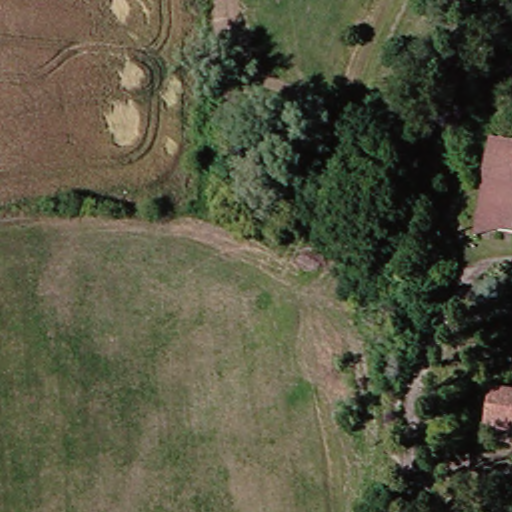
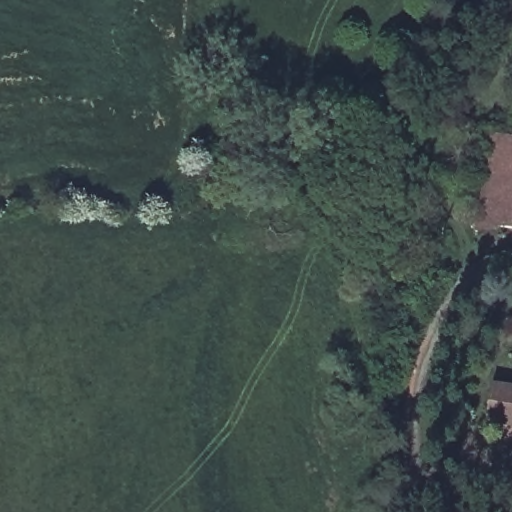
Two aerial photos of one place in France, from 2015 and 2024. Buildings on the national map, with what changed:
unchanged [(512,139),(512,212),(480,205),(493,135),(512,139)]
unchanged [(480,205),(512,212),(512,233),(475,228),(480,205)]
unchanged [(482,416),(486,378),(512,382),(512,436),(490,433),(491,417),(482,416)]

